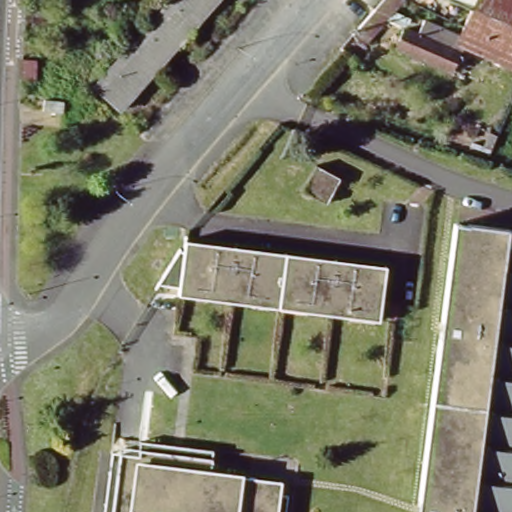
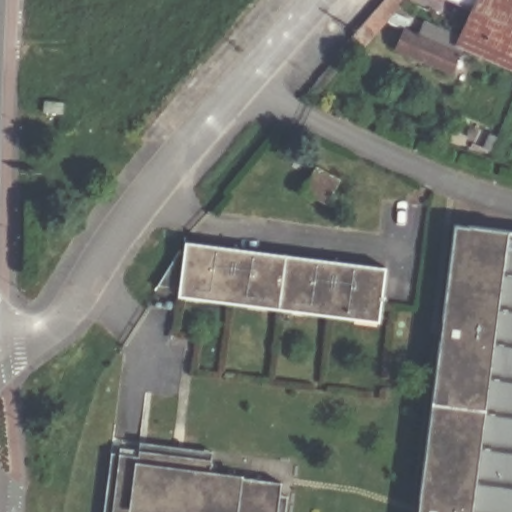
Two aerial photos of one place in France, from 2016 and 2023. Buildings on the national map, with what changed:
demolished [(225,0),(121,116),(95,93),(179,0),(225,0)]
unchanged [(420,21),(419,23),(402,16),(377,46),(365,35),(387,11),(397,0),(418,0),(422,15),(420,21)]
unchanged [(470,36),(475,26),(479,21),(483,10),(463,0),(512,0),(512,65),(490,55),(472,48),(467,46),(470,36)]
demolished [(26,9),(50,11),(50,26),(25,26),(26,9)]
unchanged [(441,23),(470,36),(467,46),(472,48),(470,53),(466,61),(462,72),(407,48),(415,29),(430,36),(436,21),(441,23)]
demolished [(24,60),(35,61),(34,80),(22,79),(24,60)]
unchanged [(62,105),(61,116),(43,115),(44,104),(62,105)]
unchanged [(450,224),(512,231),(512,512),(415,512),(450,224)]
unchanged [(382,267),(376,319),(177,297),(178,290),(154,286),(182,242),(382,267)]
unchanged [(135,457),(135,445),(208,453),(209,470),(238,475),(238,479),(276,483),(275,498),(281,498),(279,512),(105,512),(112,453),(135,457)]

